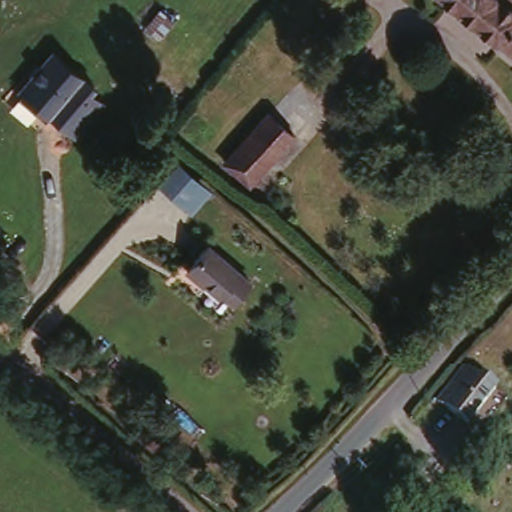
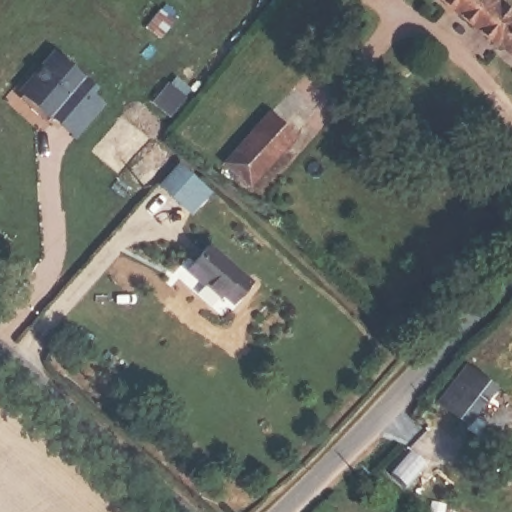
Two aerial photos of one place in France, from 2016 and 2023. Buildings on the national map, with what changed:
unchanged [(498,47),(442,0),(496,0),(512,12),(512,51),(502,42),(498,47)]
unchanged [(172,20),(160,37),(147,27),(161,10),(172,20)]
unchanged [(53,50),(97,84),(94,90),(109,105),(77,139),(65,128),(49,115),(18,90),(53,50)]
new [(172,117),(155,104),(171,83),(189,95),(172,117)]
unchanged [(292,136),(250,187),(229,168),(270,119),(292,136)]
unchanged [(190,214),(180,204),(159,185),(174,166),(196,186),(205,195),(190,214)]
unchanged [(251,280),(232,303),(219,293),(216,296),(186,271),(209,246),(251,280)]
unchanged [(495,393),(467,430),(438,406),(454,386),(453,385),(466,370),(495,393)]

